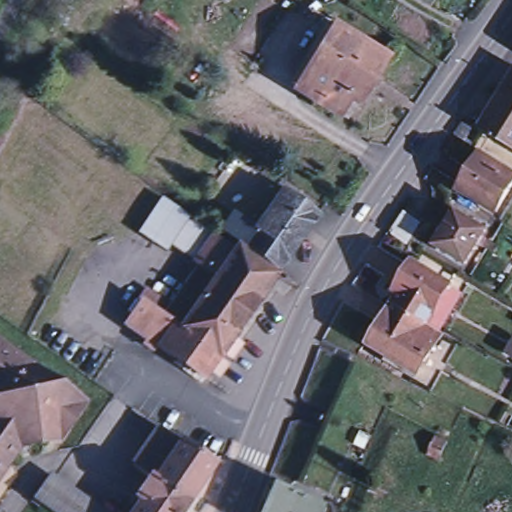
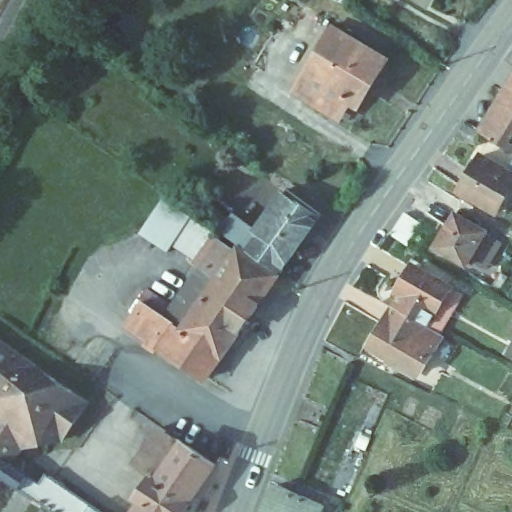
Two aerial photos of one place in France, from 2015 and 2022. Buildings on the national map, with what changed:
unchanged [(429,3),(423,0),(431,0),(429,3)]
unchanged [(335,28),(385,58),(350,118),(349,119),(298,90),(302,84),(335,28)]
unchanged [(495,103),(512,75),(512,113),(495,103)]
unchanged [(488,138),(482,151),(455,135),(465,121),(480,130),(483,124),(495,103),(512,113),(512,152),(488,138)]
unchanged [(483,155),(512,174),(512,189),(497,212),(460,188),(475,167),(483,155)]
unchanged [(317,220),(277,276),(239,250),(240,248),(218,233),(228,218),(251,233),(280,194),(317,220)]
unchanged [(135,300),(132,298),(140,287),(167,305),(195,266),(190,262),(190,261),(167,244),(162,251),(134,230),(158,197),(186,217),(193,222),(210,234),(207,238),(232,255),(235,252),(275,279),(254,308),(202,381),(120,323),(135,300)]
unchanged [(490,227),(468,261),(439,242),(460,208),(490,227)]
unchanged [(420,220),(408,240),(389,228),(403,209),(420,220)]
unchanged [(407,288),(403,286),(415,266),(451,287),(430,326),(397,307),(407,288)]
unchanged [(445,334),(422,373),(402,362),(399,368),(389,362),(392,356),(375,347),(397,307),(430,326),(445,334)]
unchanged [(65,429),(23,442),(5,466),(0,463),(0,328),(92,391),(65,429)]
unchanged [(182,441),(156,479),(150,476),(132,463),(160,425),(182,441)]
unchanged [(437,458),(425,452),(432,437),(445,443),(437,458)]
unchanged [(137,494),(150,476),(156,479),(182,441),(215,463),(187,502),(190,504),(184,512),(133,512),(142,498),(137,494)]
unchanged [(0,463),(5,466),(0,472),(0,463)]
unchanged [(32,499),(50,475),(103,512),(52,512),(42,504),(32,499)]
unchanged [(322,504),(318,512),(265,512),(277,485),(322,504)]

